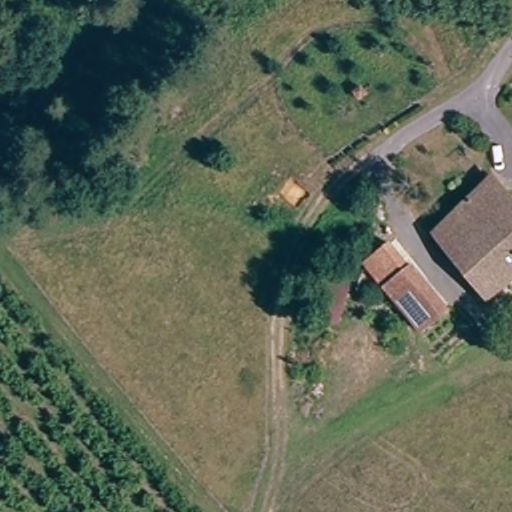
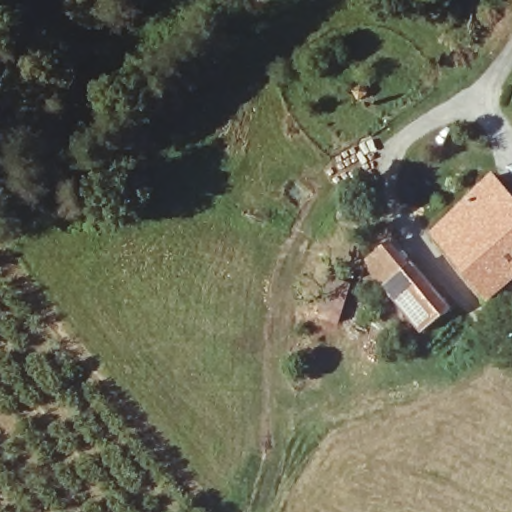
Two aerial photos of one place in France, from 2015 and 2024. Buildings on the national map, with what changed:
unchanged [(512,273),(510,275),(503,268),(489,282),(436,225),(493,171),(512,191),(512,273)]
unchanged [(423,332),(382,287),(407,262),(449,308),(423,332)]

